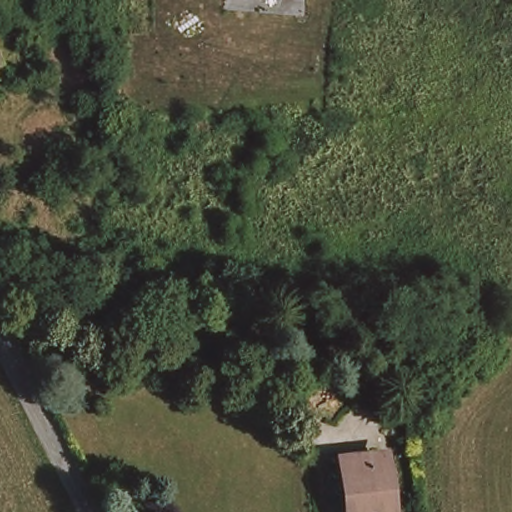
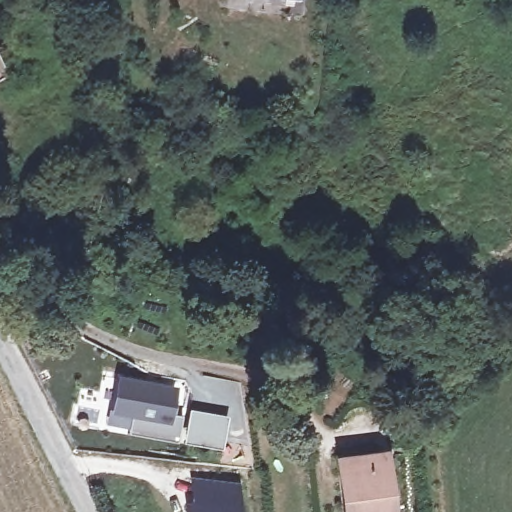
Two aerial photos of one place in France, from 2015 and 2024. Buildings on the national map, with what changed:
unchanged [(3,60),(0,61),(0,53),(3,60)]
new [(132,416),(110,413),(117,375),(179,386),(174,415),(183,417),(177,442),(130,432),(132,416)]
new [(225,420),(220,446),(189,440),(194,414),(225,420)]
unchanged [(350,455),(350,460),(386,457),(391,512),(345,512),(340,455),(350,455)]
new [(192,500),(190,476),(240,483),(243,512),(186,512),(185,500),(192,500)]

